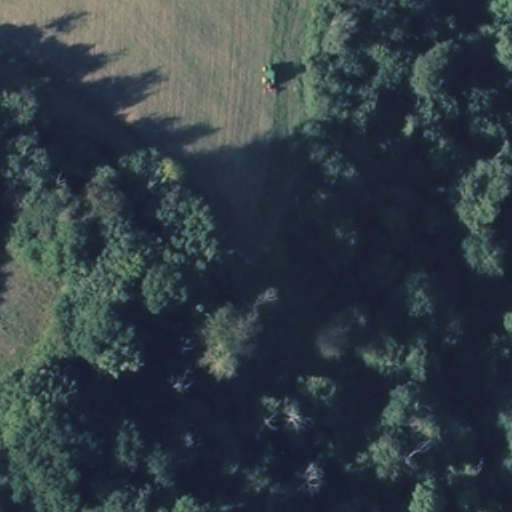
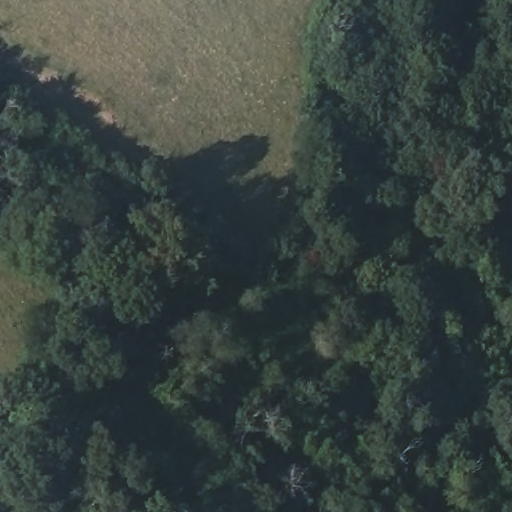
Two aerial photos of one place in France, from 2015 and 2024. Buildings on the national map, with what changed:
[]

